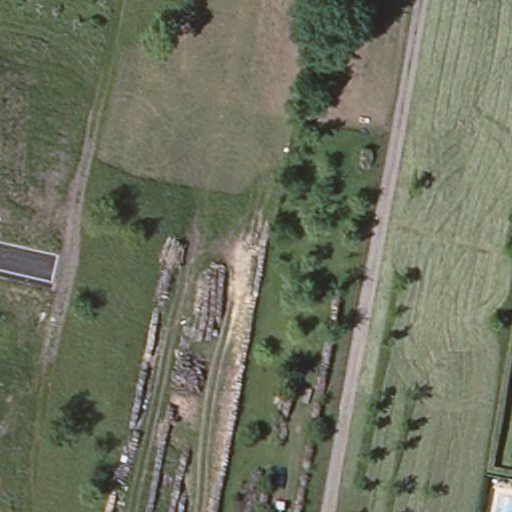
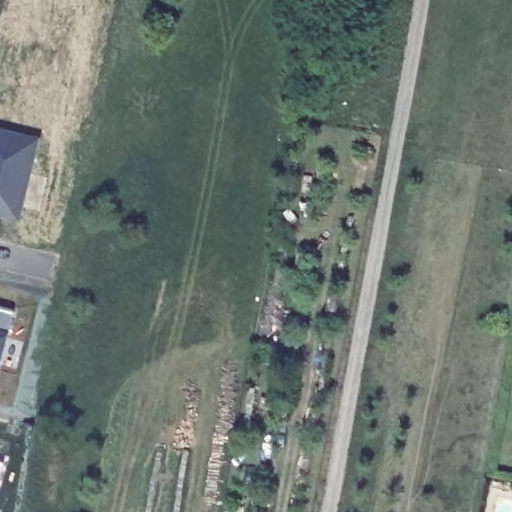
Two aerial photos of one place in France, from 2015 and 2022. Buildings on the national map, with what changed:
new [(29,168),(47,173),(39,206),(20,202),(18,212),(0,208),(0,127),(37,135),(29,168)]
new [(0,306),(15,310),(0,372),(0,306)]
unchanged [(512,495),(512,512),(491,512),(495,492),(512,495)]

